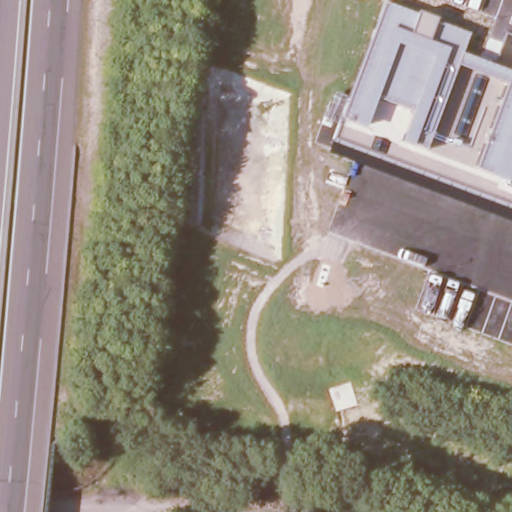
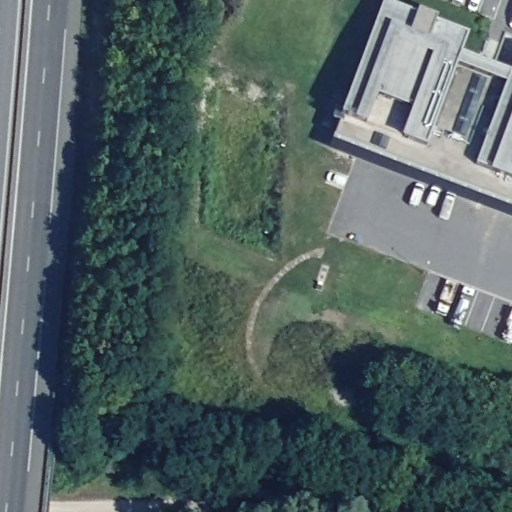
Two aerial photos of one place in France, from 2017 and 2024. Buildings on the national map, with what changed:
unchanged [(334,141),(342,117),(384,2),(417,12),(436,20),(470,35),(462,52),(511,71),(512,68),(512,207),(334,141)]

